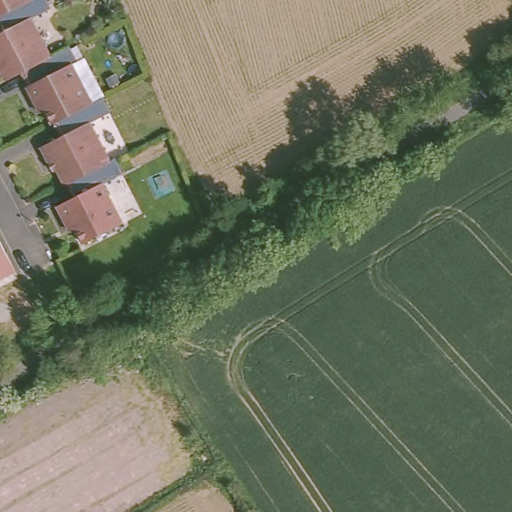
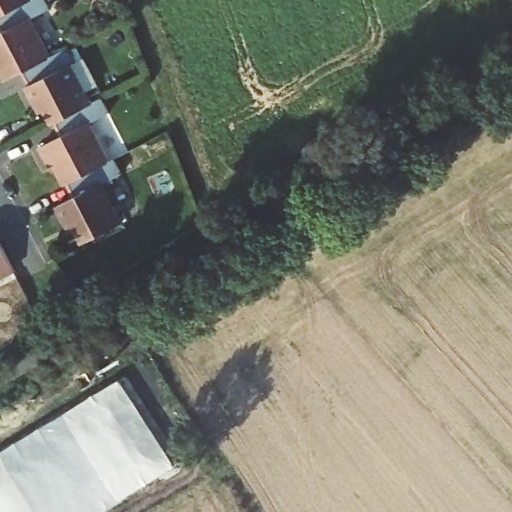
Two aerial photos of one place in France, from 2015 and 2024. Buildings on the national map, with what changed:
unchanged [(31,6),(12,16),(0,22),(0,0),(29,0),(31,6)]
unchanged [(2,37),(0,33),(0,22),(12,16),(31,6),(42,0),(43,0),(50,13),(30,23),(50,63),(42,67),(24,77),(22,77),(10,84),(5,86),(0,75),(0,38),(2,37)]
unchanged [(35,107),(26,92),(28,91),(22,77),(24,77),(42,67),(50,63),(69,54),(76,67),(70,70),(92,110),(88,112),(56,130),(55,130),(54,131),(46,117),(41,119),(35,107)]
unchanged [(50,169),(42,153),(63,142),(56,130),(88,112),(92,110),(103,105),(110,118),(90,128),(110,168),(109,169),(68,190),(66,191),(58,175),(55,177),(50,169)]
unchanged [(67,229),(59,213),(76,205),(68,190),(109,169),(110,168),(115,166),(123,180),(103,191),(123,230),(85,251),(77,237),(72,240),(67,229)]
unchanged [(15,276),(0,284),(0,246),(15,276)]
new [(91,512),(0,512),(0,449),(122,374),(175,461),(91,512)]

